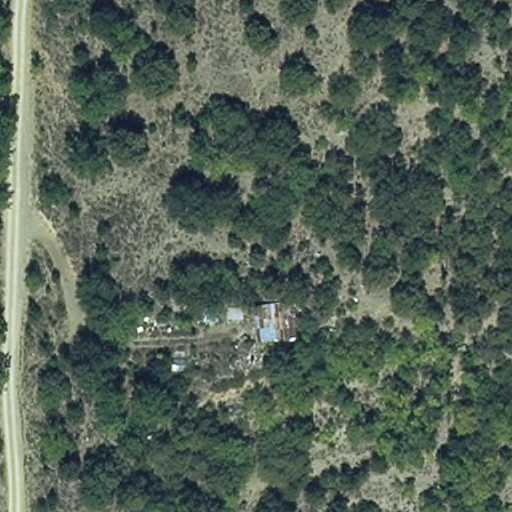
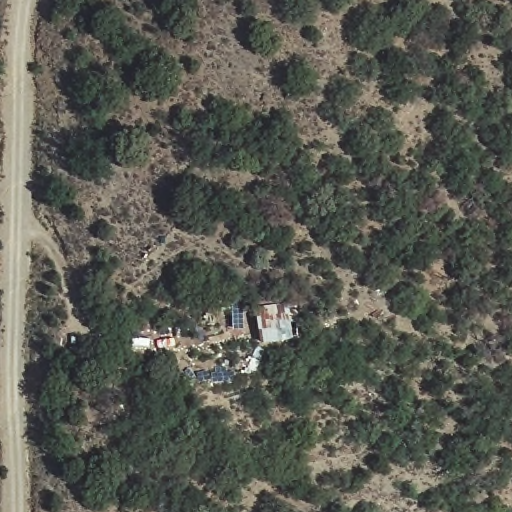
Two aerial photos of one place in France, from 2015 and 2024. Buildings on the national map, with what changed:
unchanged [(251,309),(291,303),(296,339),(258,345),(251,309)]

